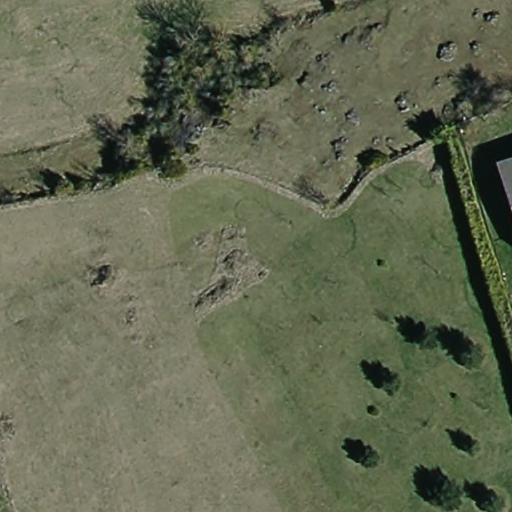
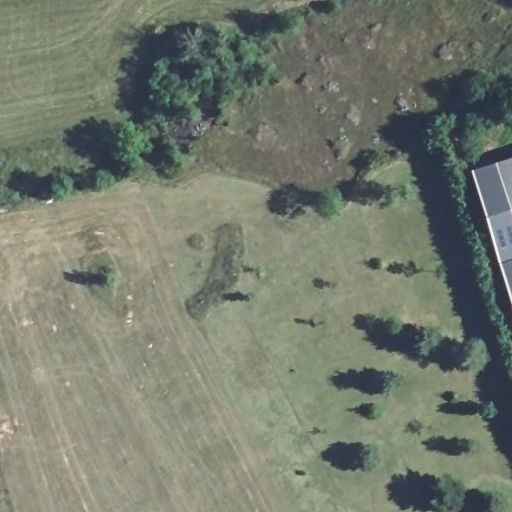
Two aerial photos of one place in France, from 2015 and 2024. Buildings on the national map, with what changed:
unchanged [(490,164),(512,158),(512,233),(490,164)]
new [(471,170),(490,164),(512,233),(512,308),(471,170)]

